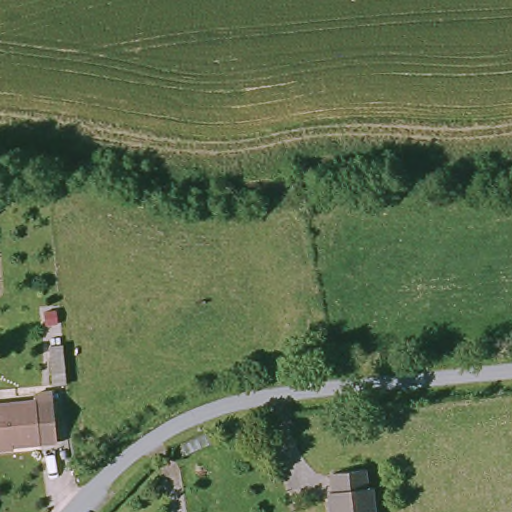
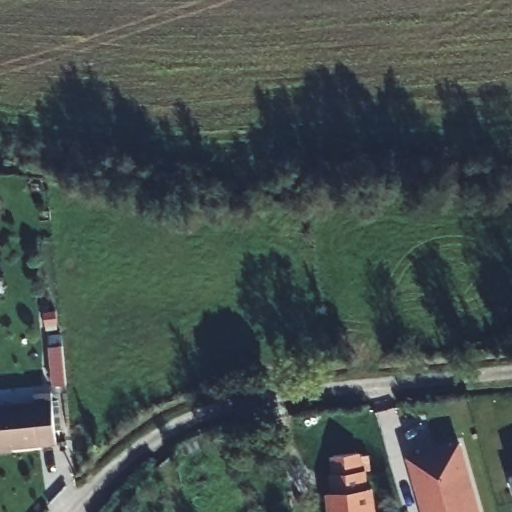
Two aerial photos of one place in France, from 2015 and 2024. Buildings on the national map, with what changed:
unchanged [(52,382),(48,348),(63,346),(66,382),(52,382)]
unchanged [(35,397),(53,396),(58,448),(0,455),(0,412),(36,408),(35,397)]
new [(458,442),(478,512),(426,512),(411,455),(458,442)]
unchanged [(354,463),(358,482),(366,481),(373,512),(328,512),(324,487),(330,486),(327,466),(354,463)]

